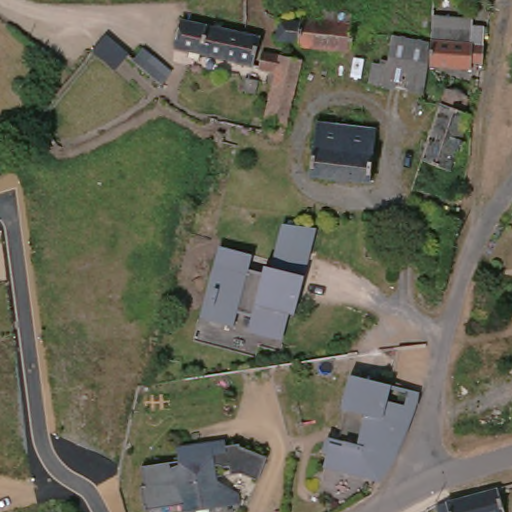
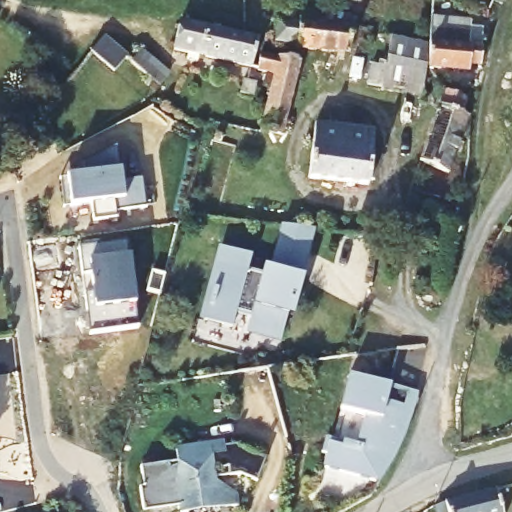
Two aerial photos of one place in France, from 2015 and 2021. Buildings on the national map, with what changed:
unchanged [(338,26),(354,28),(349,58),(303,52),(302,48),(277,44),(279,24),(299,29),(301,22),(318,24),(321,11),(321,10),(336,6),(338,26)]
unchanged [(255,39),(248,70),(171,55),(178,25),(229,35),(244,37),(255,39)]
unchanged [(476,76),(468,75),(466,81),(423,74),(425,52),(426,46),(426,43),(428,32),(466,37),(471,55),(481,57),(476,76)]
unchanged [(158,92),(126,66),(113,80),(86,61),(108,43),(129,62),(136,51),(168,77),(158,92)]
unchanged [(378,99),(388,44),(425,52),(423,74),(413,104),(381,100),(378,99)]
unchanged [(255,81),(259,60),(270,62),(296,67),(280,139),(258,135),(268,84),(255,81)]
unchanged [(463,107),(461,127),(466,129),(446,183),(416,173),(438,101),(463,107)]
unchanged [(307,185),(308,136),(333,137),(334,125),(351,125),(353,138),(368,140),(365,187),(307,185)]
new [(146,206),(121,210),(119,201),(114,202),(116,217),(96,220),(95,202),(69,206),(64,174),(85,173),(81,162),(116,145),(121,169),(122,179),(141,177),(146,206)]
unchanged [(263,260),(276,223),(318,232),(288,343),(193,319),(213,246),(263,260)]
new [(129,256),(136,301),(139,329),(91,334),(79,247),(126,239),(129,256)]
demolished [(428,320),(402,315),(408,284),(433,289),(428,320)]
unchanged [(418,390),(413,419),(379,485),(318,474),(345,375),(418,390)]
unchanged [(239,455),(263,465),(258,488),(243,482),(213,487),(214,492),(238,500),(239,512),(179,512),(178,508),(148,512),(141,512),(136,489),(141,487),(139,467),(175,463),(177,453),(207,449),(208,454),(238,449),(239,455)]
unchanged [(498,512),(429,512),(429,511),(493,493),(498,512)]

